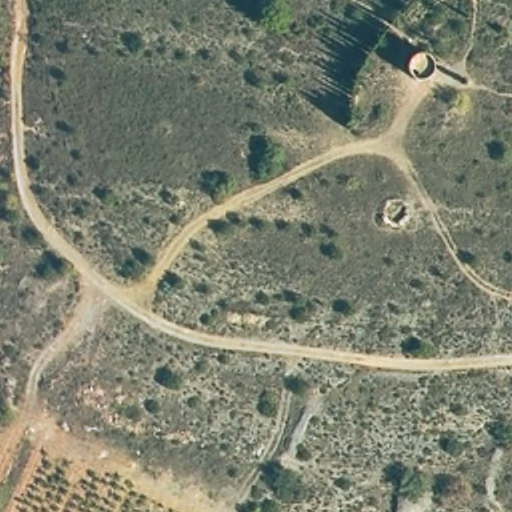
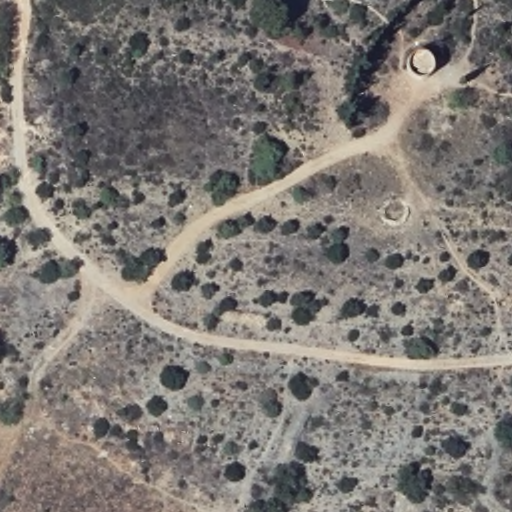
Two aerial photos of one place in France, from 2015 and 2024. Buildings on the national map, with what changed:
unchanged [(424,45),(432,51),(433,59),(430,65),(426,70),(420,72),(415,72),(410,66),(407,59),(410,52),(416,46),(424,45)]

